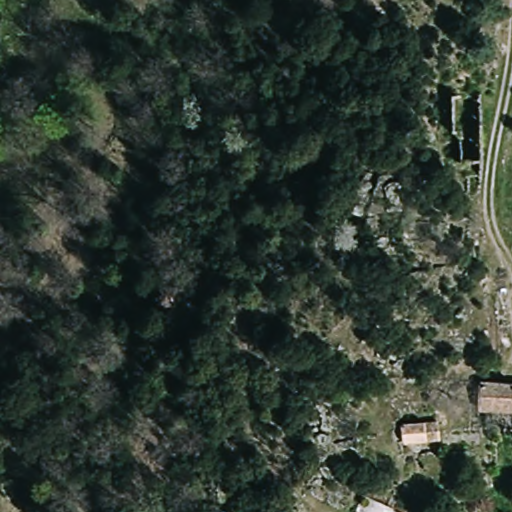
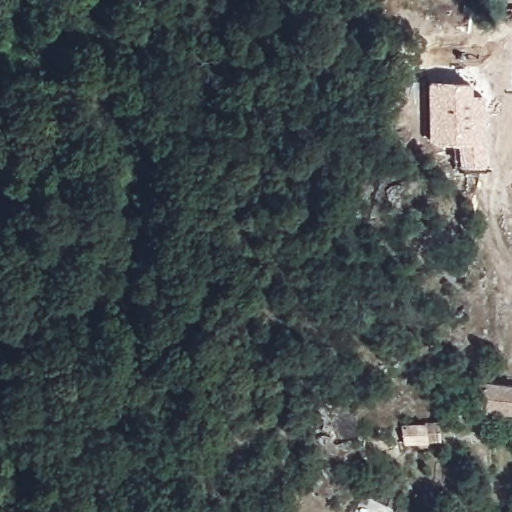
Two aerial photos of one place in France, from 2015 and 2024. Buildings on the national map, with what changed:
new [(470,90),(481,90),(483,162),(458,165),(456,141),(427,141),(427,78),(470,79),(470,90)]
unchanged [(477,410),(478,387),(493,387),(512,388),(512,414),(491,412),(477,410)]
unchanged [(442,420),(443,442),(403,445),(400,424),(442,420)]

